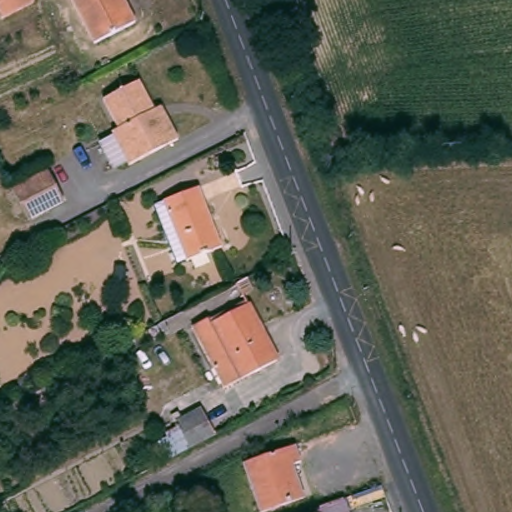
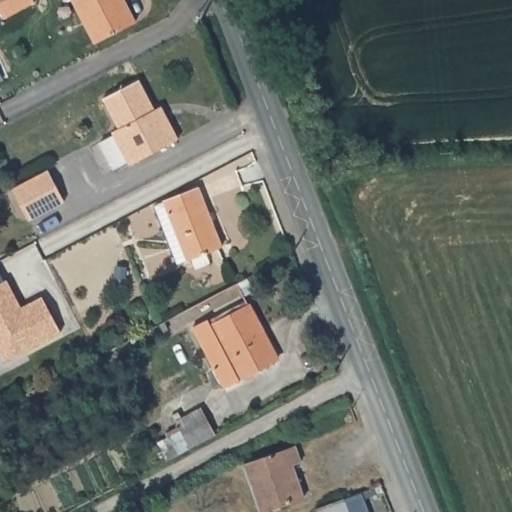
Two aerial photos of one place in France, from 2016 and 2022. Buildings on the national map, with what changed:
unchanged [(0,23),(0,22),(0,0),(31,0),(34,6),(0,23)]
unchanged [(122,0),(133,0),(144,21),(100,42),(75,0),(121,0),(122,0)]
unchanged [(141,77),(161,117),(170,114),(182,140),(131,164),(113,130),(119,128),(102,95),(141,77)]
unchanged [(48,172),(65,202),(31,220),(14,189),(48,172)]
unchanged [(198,189),(224,249),(189,263),(163,203),(198,189)]
new [(5,279),(22,307),(40,297),(61,332),(4,361),(0,354),(0,271),(5,279)]
unchanged [(208,311),(212,318),(248,300),(281,357),(229,383),(193,319),(208,311)]
unchanged [(187,454),(170,426),(196,413),(213,441),(187,454)]
unchanged [(298,445),(303,461),(292,467),(305,501),(275,512),(262,512),(244,466),(298,445)]
unchanged [(350,512),(318,512),(345,499),(350,512)]

